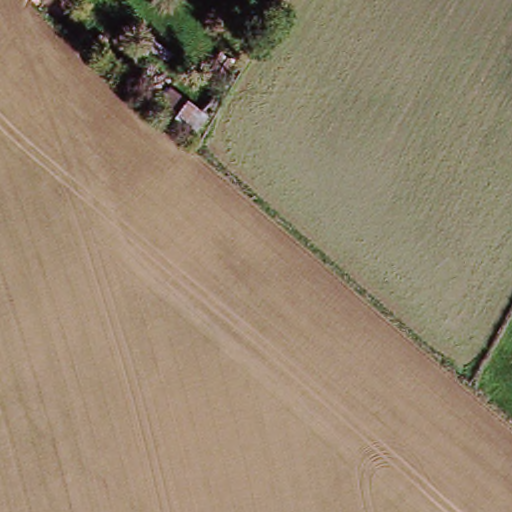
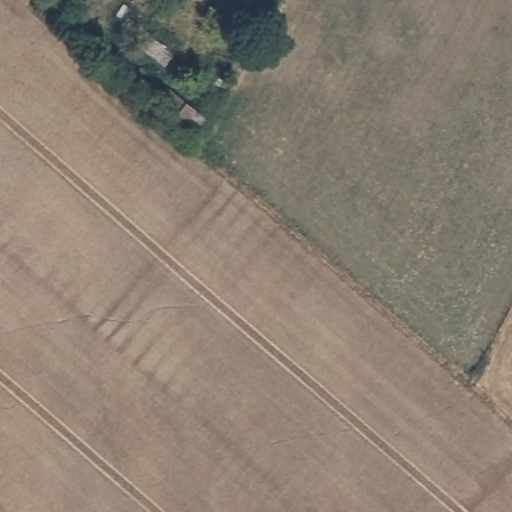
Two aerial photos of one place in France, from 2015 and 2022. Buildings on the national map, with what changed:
unchanged [(178,124),(151,106),(164,92),(193,106),(178,124)]

